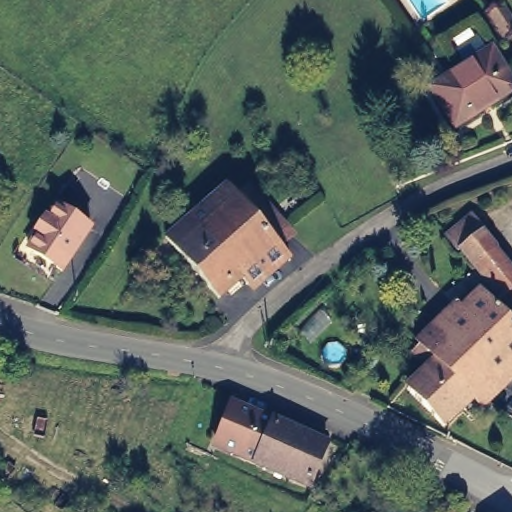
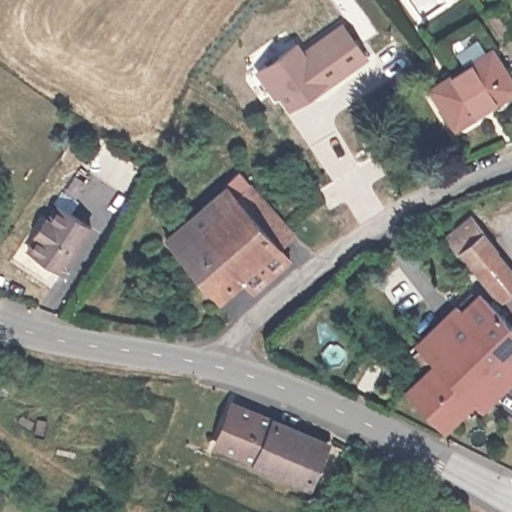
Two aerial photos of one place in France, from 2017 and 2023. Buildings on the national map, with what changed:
unchanged [(512,32),(500,39),(486,16),(502,5),(512,20),(512,32)]
new [(292,42),(299,52),(338,21),(363,52),(323,83),(321,80),(290,104),(278,91),(275,94),(257,70),(292,42)]
unchanged [(508,90),(450,127),(427,88),(485,52),(508,90)]
unchanged [(245,285),(223,304),(189,263),(182,254),(173,244),(231,193),(240,202),(254,190),(285,226),(297,239),(282,252),(286,256),(288,258),(250,291),(245,285)]
unchanged [(27,249),(37,236),(35,234),(45,218),(47,220),(57,206),(91,228),(62,272),(27,249)]
unchanged [(500,300),(459,250),(457,251),(446,238),(470,219),(512,271),(512,311),(502,298),(500,300)]
demolished [(454,261),(436,278),(418,260),(436,242),(454,261)]
unchanged [(483,388),(442,427),(407,390),(427,370),(412,355),(422,347),(426,352),(483,297),(512,327),(512,366),(508,362),(483,388)]
unchanged [(307,492),(217,450),(232,409),(325,448),(307,492)]

